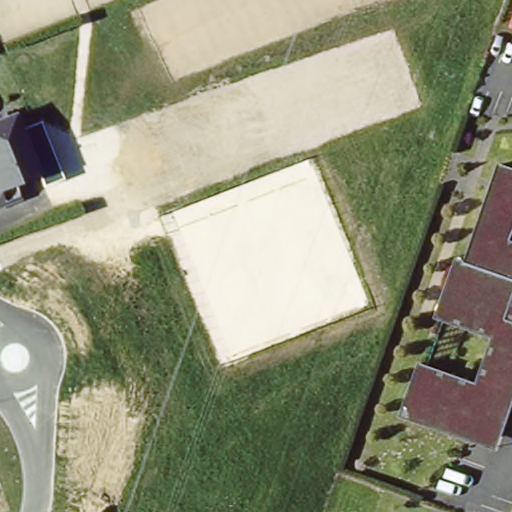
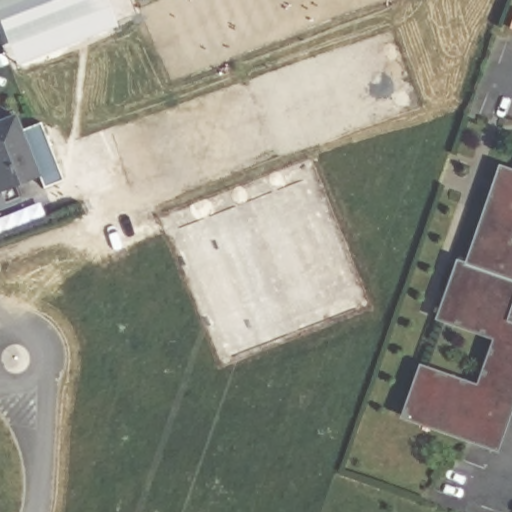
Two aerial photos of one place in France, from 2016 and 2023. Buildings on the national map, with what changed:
new [(21,64),(0,9),(0,0),(112,0),(121,25),(21,64)]
unchanged [(0,206),(0,124),(14,118),(40,178),(14,189),(18,198),(0,206)]
unchanged [(401,416),(419,363),(477,383),(493,338),(436,318),(457,257),(466,260),(499,164),(512,168),(512,409),(498,451),(401,416)]

